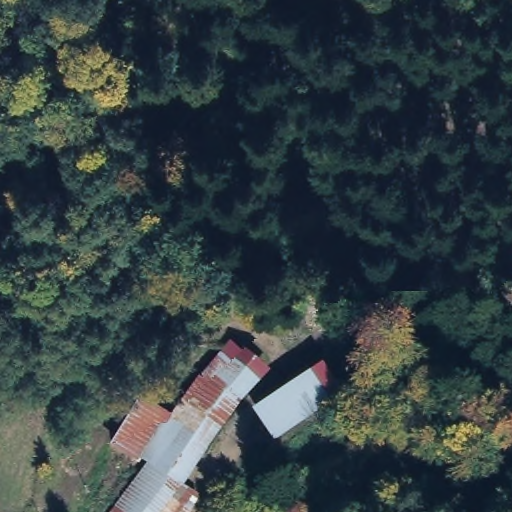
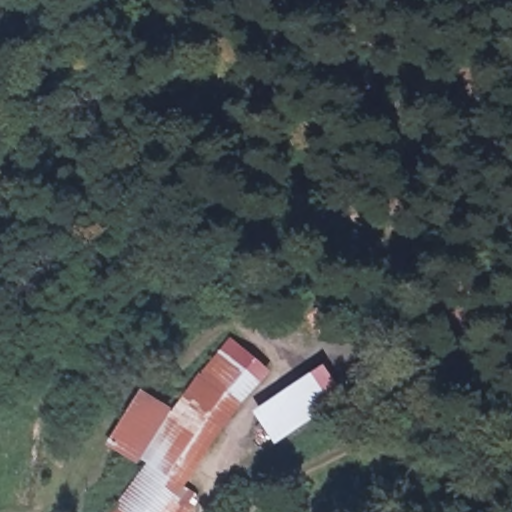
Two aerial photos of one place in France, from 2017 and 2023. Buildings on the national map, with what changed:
unchanged [(198,504),(193,512),(109,512),(133,470),(106,447),(136,400),(168,416),(221,353),(257,387),(183,492),(198,504)]
unchanged [(249,419),(311,378),(333,414),(272,457),(249,419)]

